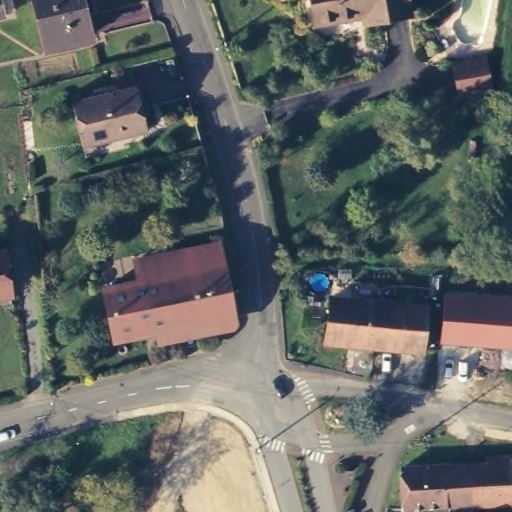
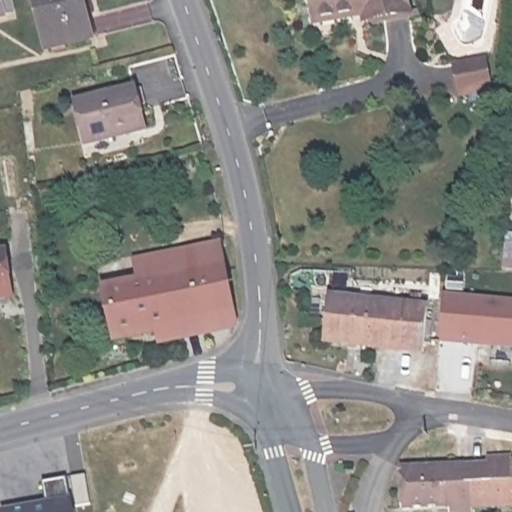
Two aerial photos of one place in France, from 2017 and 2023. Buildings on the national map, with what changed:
unchanged [(0,21),(0,0),(8,0),(13,18),(0,21)]
unchanged [(48,54),(35,0),(80,0),(91,43),(48,54)]
unchanged [(373,22),(372,13),(322,22),(318,0),(410,0),(414,15),(373,22)]
unchanged [(452,71),(487,66),(490,85),(454,90),(452,71)]
unchanged [(88,131),(81,132),(74,95),(81,93),(138,83),(145,127),(125,131),(89,137),(88,131)]
unchanged [(118,332),(107,284),(142,277),(189,268),(184,246),(221,238),(235,309),(118,332)]
unchanged [(137,257),(184,246),(189,268),(142,277),(137,257)]
unchanged [(6,250),(11,300),(0,302),(0,250),(6,250)]
unchanged [(512,300),(512,348),(440,343),(444,293),(512,300)]
unchanged [(429,307),(424,354),(329,342),(334,296),(429,307)]
unchanged [(476,512),(455,512),(455,507),(410,508),(406,468),(512,463),(512,504),(476,506),(476,512)]
new [(1,511),(48,501),(44,482),(66,478),(70,498),(73,512),(1,512),(1,511)]

